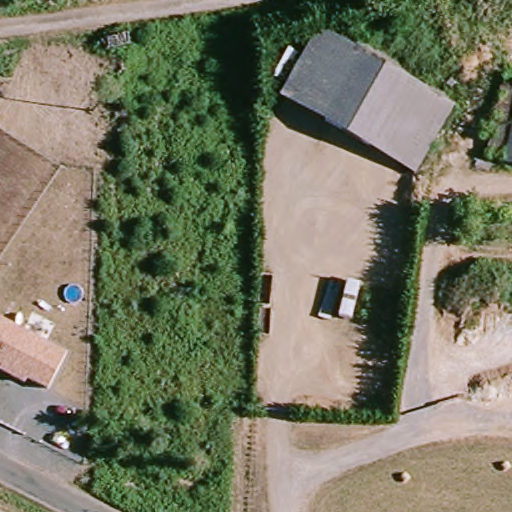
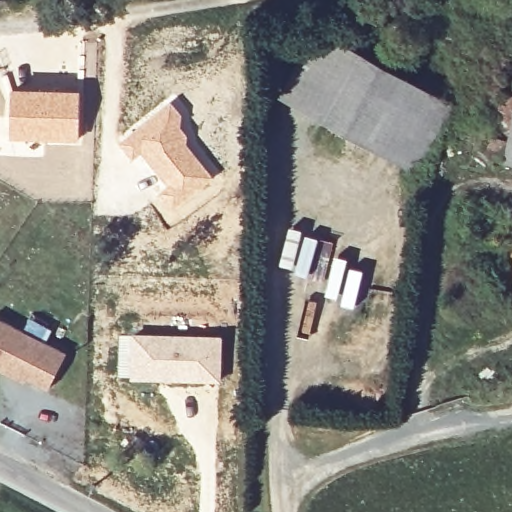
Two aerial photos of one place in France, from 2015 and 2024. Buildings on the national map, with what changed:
unchanged [(405,175),(286,98),(325,34),(447,109),(405,175)]
unchanged [(487,160),(508,81),(512,83),(512,166),(487,160)]
new [(11,89),(80,91),(78,143),(9,141),(11,89)]
new [(171,101),(184,114),(188,134),(188,143),(215,178),(172,211),(159,195),(166,188),(140,155),(131,161),(118,143),(171,101)]
unchanged [(51,391),(32,381),(28,387),(0,373),(0,368),(2,365),(0,363),(0,317),(70,353),(51,391)]
new [(118,334),(156,333),(224,335),(221,383),(117,378),(118,334)]

